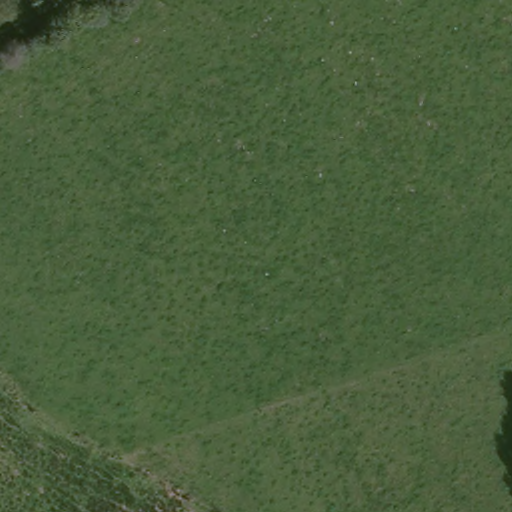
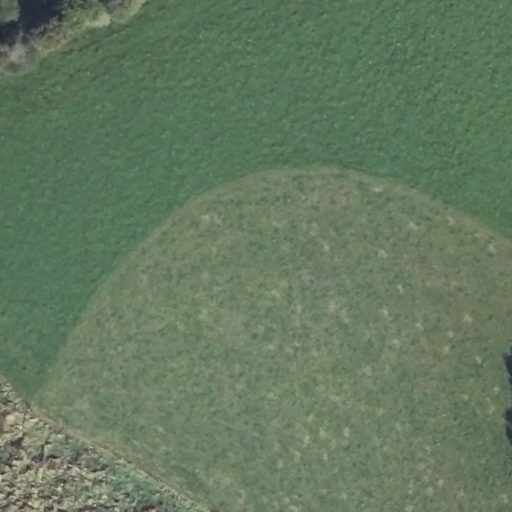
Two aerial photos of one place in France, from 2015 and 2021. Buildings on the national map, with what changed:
[]

